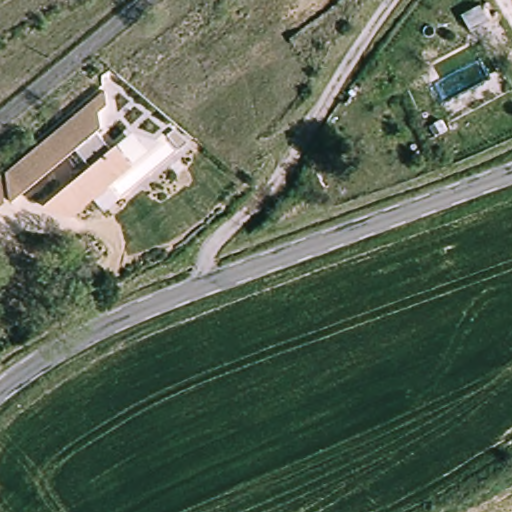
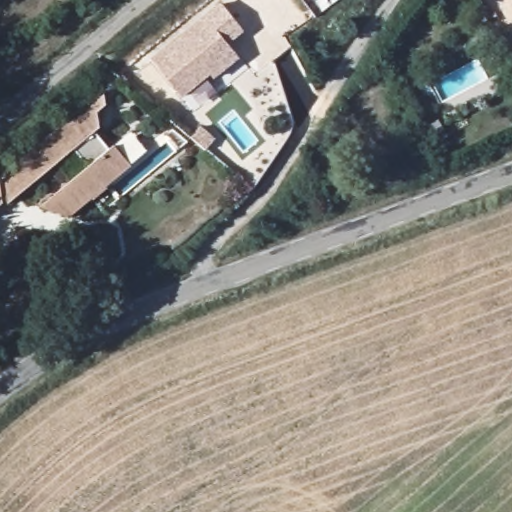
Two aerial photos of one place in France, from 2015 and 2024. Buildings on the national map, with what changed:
new [(228,43),(240,58),(215,80),(211,75),(183,97),(153,60),(221,2),(245,33),(228,43)]
unchanged [(100,92),(102,106),(95,114),(101,129),(96,133),(111,151),(116,147),(133,166),(72,216),(46,205),(93,166),(78,148),(13,201),(1,173),(100,92)]
new [(203,123),(219,137),(209,148),(193,134),(203,123)]

